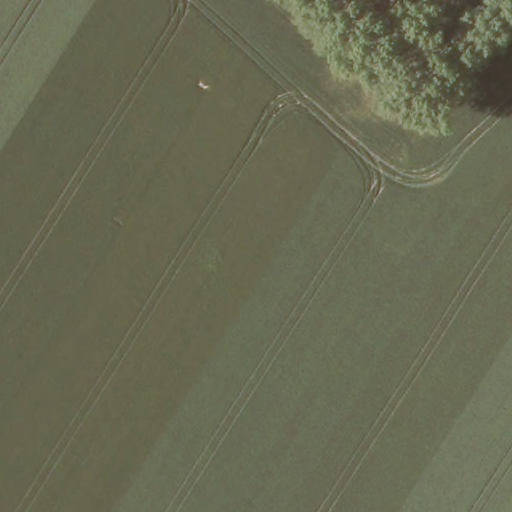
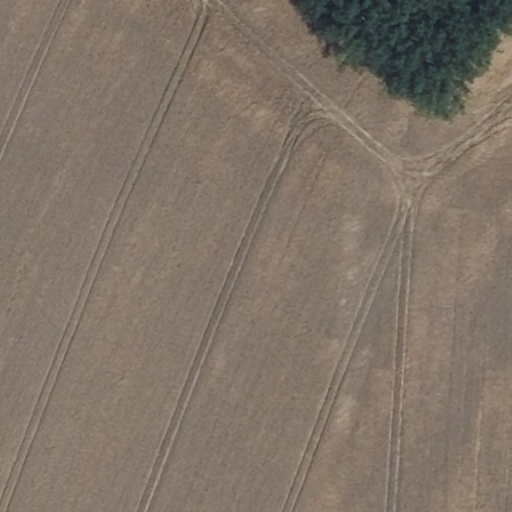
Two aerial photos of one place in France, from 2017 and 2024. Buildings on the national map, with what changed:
[]

